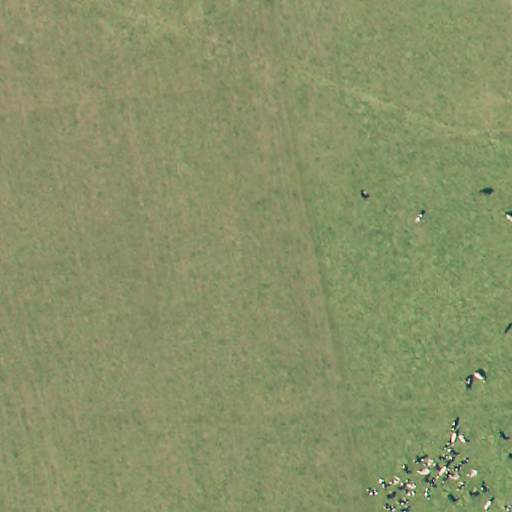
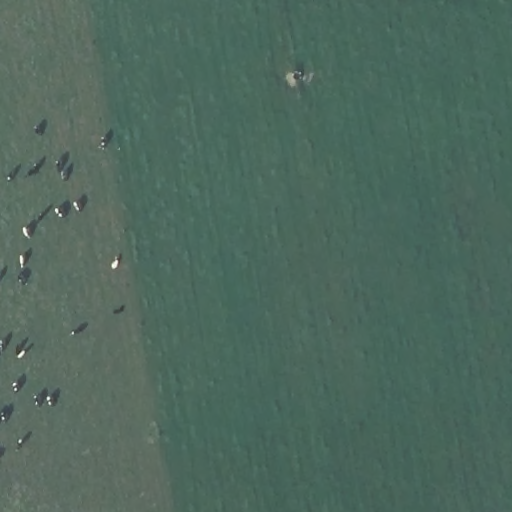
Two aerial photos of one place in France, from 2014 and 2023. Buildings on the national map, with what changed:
[]

